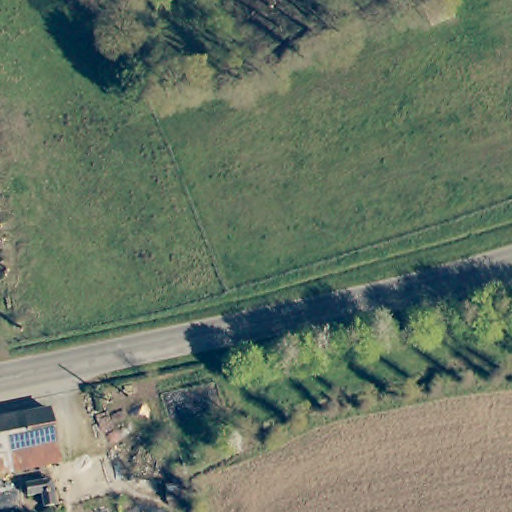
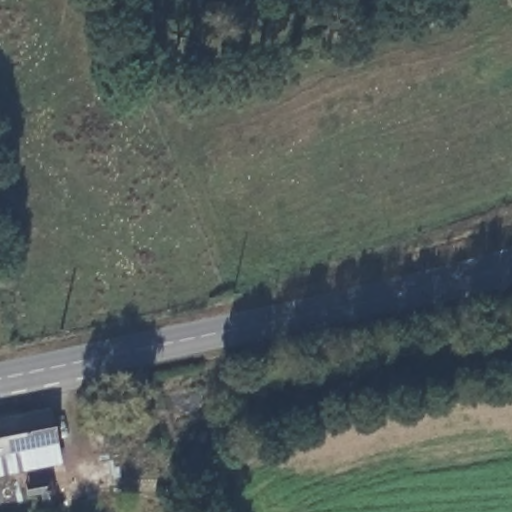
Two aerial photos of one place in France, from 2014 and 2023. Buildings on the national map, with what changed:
unchanged [(428,21),(421,0),(422,0),(446,0),(450,14),(428,21)]
unchanged [(45,412),(52,444),(0,456),(0,422),(45,412)]
unchanged [(0,479),(0,456),(52,444),(56,465),(0,479)]

